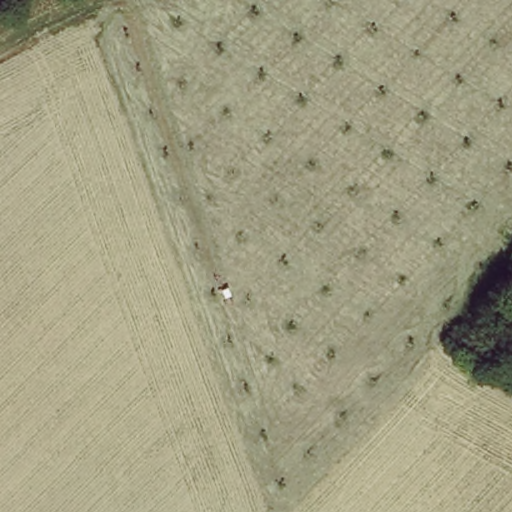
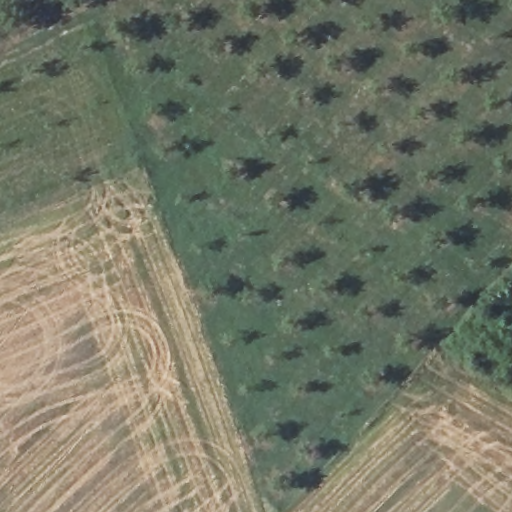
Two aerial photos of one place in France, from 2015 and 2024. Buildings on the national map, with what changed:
[]

